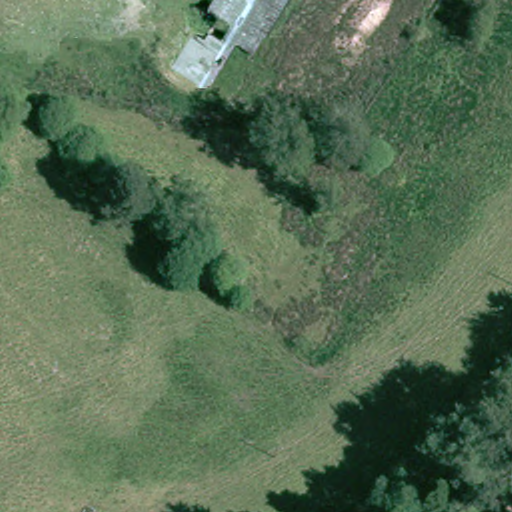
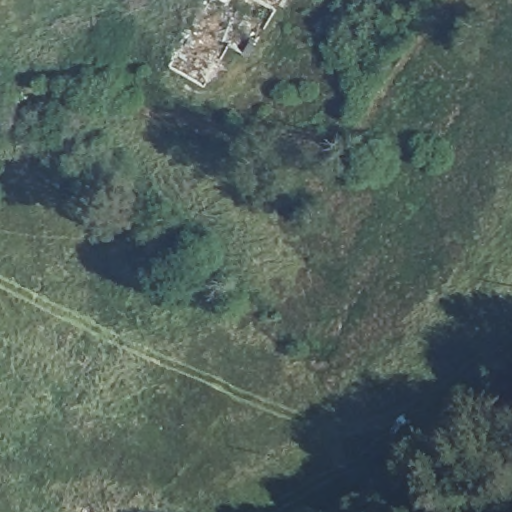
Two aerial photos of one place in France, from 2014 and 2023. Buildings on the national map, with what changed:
unchanged [(210,0),(276,0),(248,49),(198,21),(210,0)]
unchanged [(237,50),(212,90),(172,66),(190,35),(203,42),(209,32),(237,50)]

